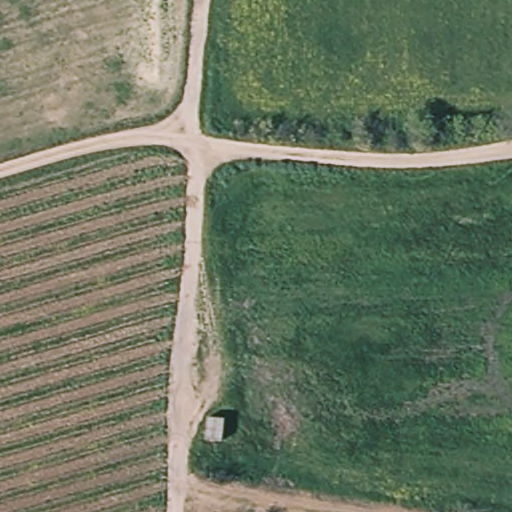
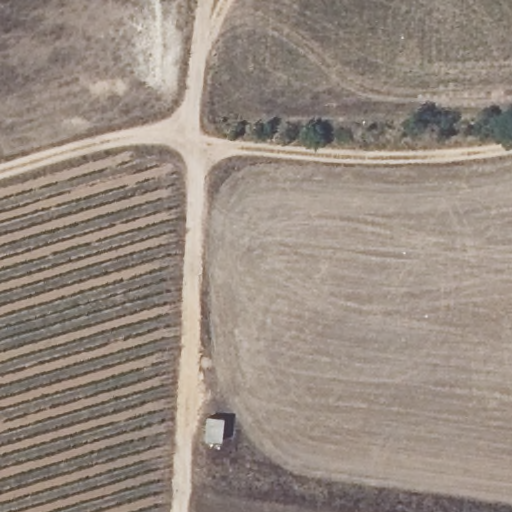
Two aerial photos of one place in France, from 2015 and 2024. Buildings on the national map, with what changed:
unchanged [(208,440),(211,416),(227,417),(224,441),(208,440)]

